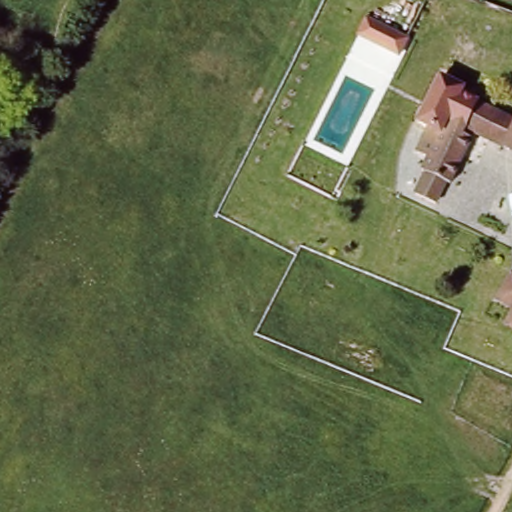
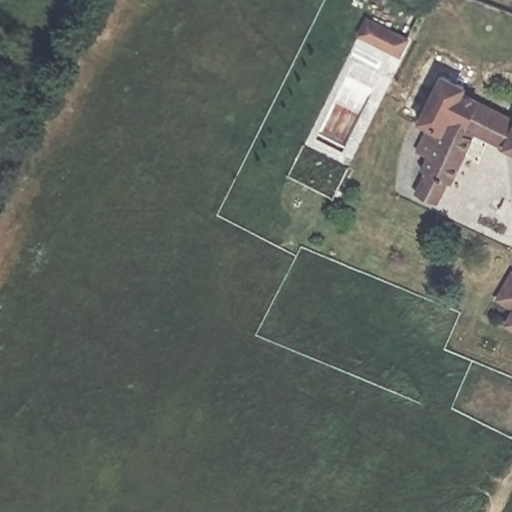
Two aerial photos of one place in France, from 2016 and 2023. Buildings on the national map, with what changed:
unchanged [(410,38),(400,59),(354,37),(364,15),(410,38)]
unchanged [(442,178),(434,174),(424,196),(407,185),(418,165),(412,161),(417,151),(407,145),(419,121),(429,124),(444,101),(468,98),(473,101),(479,97),(507,112),(512,115),(512,120),(502,137),(468,119),(442,178)]
unchanged [(512,143),(502,137),(512,120),(512,143)]
unchanged [(512,269),(512,304),(496,295),(512,269)]
unchanged [(512,313),(512,328),(506,324),(512,313)]

